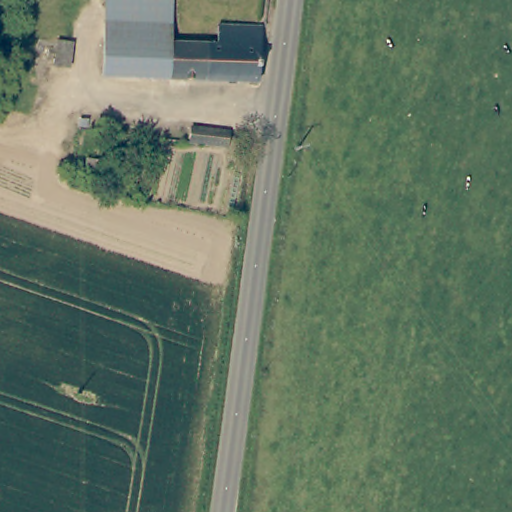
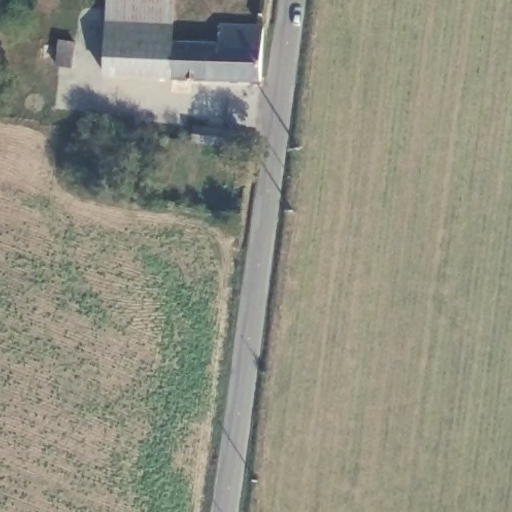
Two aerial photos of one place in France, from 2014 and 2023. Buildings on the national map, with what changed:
unchanged [(169,77),(101,70),(107,0),(175,0),(172,43),(169,77)]
unchanged [(218,46),(221,27),(265,30),(257,84),(169,77),(172,43),(218,46)]
unchanged [(232,140),(228,163),(172,157),(176,133),(232,140)]

